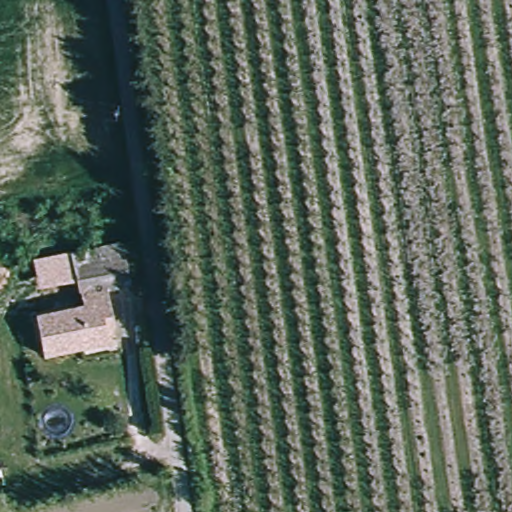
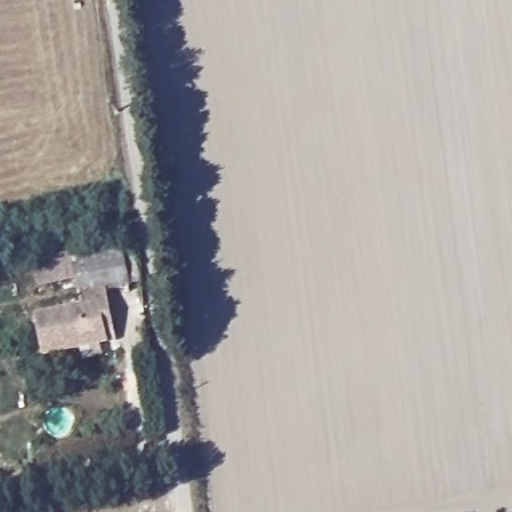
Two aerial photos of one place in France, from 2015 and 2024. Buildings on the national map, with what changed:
unchanged [(121,243),(131,285),(106,290),(113,327),(106,329),(109,343),(44,356),(36,317),(83,307),(80,293),(72,254),(121,243)]
unchanged [(64,255),(66,270),(56,272),(55,267),(44,269),(43,260),(64,255)]

